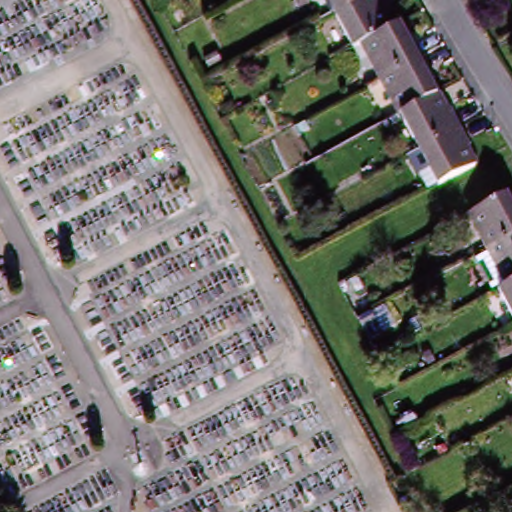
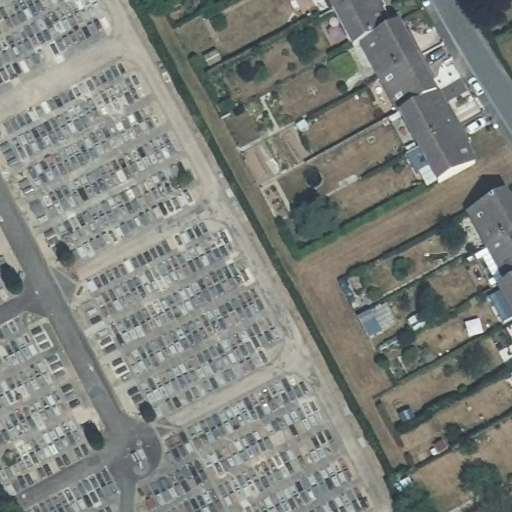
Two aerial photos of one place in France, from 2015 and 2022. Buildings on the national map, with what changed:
unchanged [(326,0),(361,0),(333,14),(326,0)]
unchanged [(361,0),(379,0),(383,10),(377,13),(387,32),(359,47),(352,51),(333,14),(361,0)]
unchanged [(359,47),(387,32),(396,28),(405,46),(411,43),(420,59),(377,82),(359,47)]
unchanged [(215,49),(220,60),(207,67),(201,56),(215,49)]
unchanged [(377,82),(420,59),(427,74),(422,77),(433,97),(396,117),(377,82)]
unchanged [(396,117),(433,97),(445,119),(452,115),(460,129),(415,152),(396,117)]
unchanged [(460,129),(468,144),(461,148),(472,168),(434,189),(415,152),(460,129)]
unchanged [(463,216),(497,196),(504,212),(511,209),(512,212),(512,235),(482,252),(463,216)]
unchanged [(512,235),(512,281),(501,287),(482,252),(512,235)]
unchanged [(358,276),(365,290),(357,294),(350,281),(358,276)]
unchanged [(494,291),(501,287),(512,281),(512,324),(494,291)]

